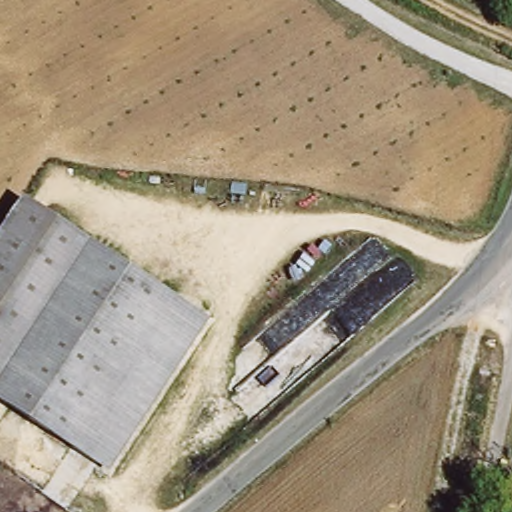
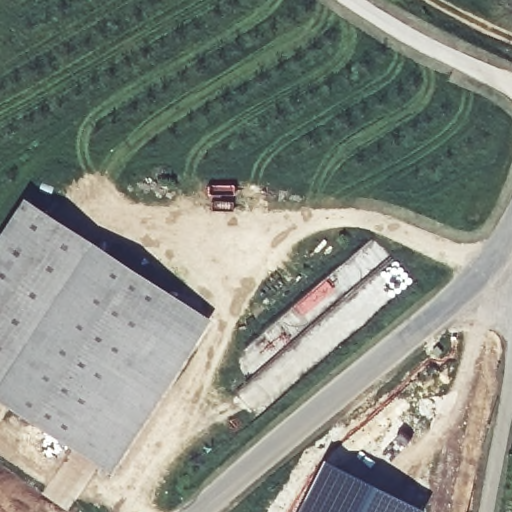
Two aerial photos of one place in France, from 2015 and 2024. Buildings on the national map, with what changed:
unchanged [(0,235),(25,197),(195,310),(94,460),(0,397),(0,235)]
unchanged [(207,318),(108,468),(94,460),(195,310),(207,318)]
new [(326,461),(429,512),(299,512),(326,461)]

